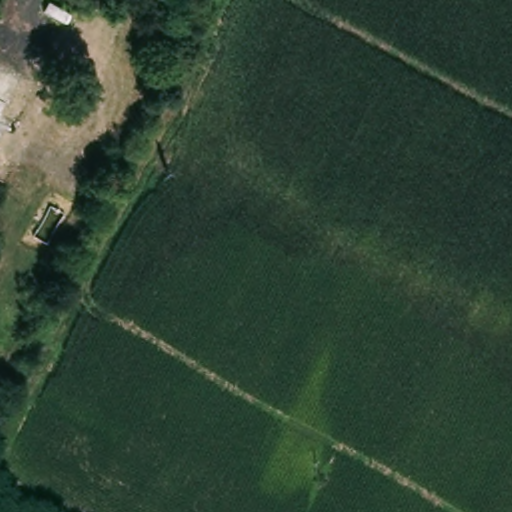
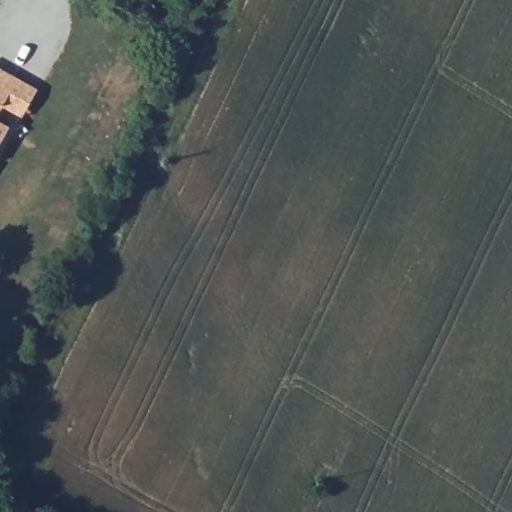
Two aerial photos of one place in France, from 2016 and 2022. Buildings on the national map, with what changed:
new [(24,117),(5,107),(0,114),(0,68),(37,88),(24,117)]
demolished [(0,112),(0,69),(18,80),(0,112)]
demolished [(0,143),(0,122),(9,128),(0,143)]
new [(0,142),(0,123),(8,128),(0,142)]

